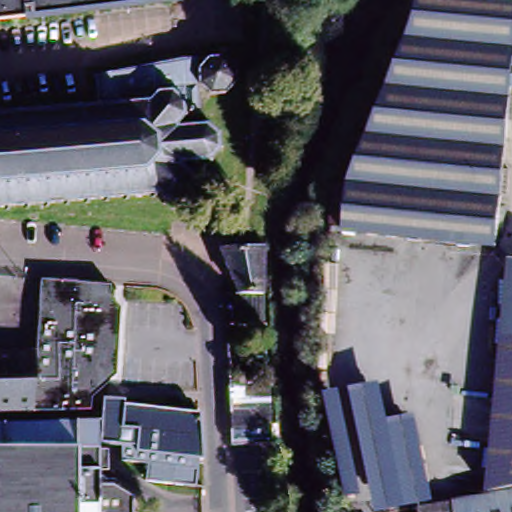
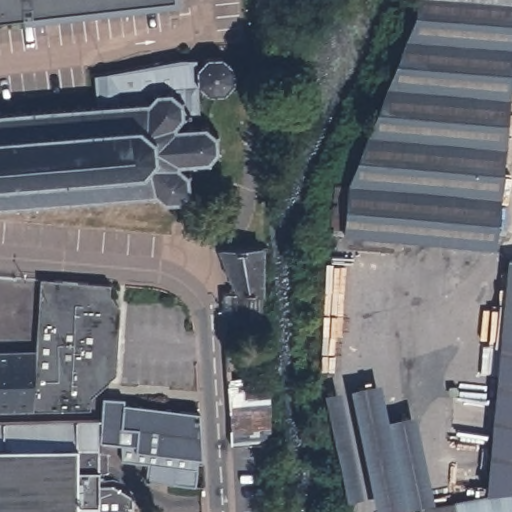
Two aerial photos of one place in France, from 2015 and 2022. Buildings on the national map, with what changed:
unchanged [(175,1),(164,2),(112,9),(61,16),(33,19),(32,10),(25,11),(26,20),(0,24),(0,0),(175,0),(175,1)]
unchanged [(353,181),(353,176),(383,104),(419,16),(420,11),(421,0),(512,0),(512,120),(500,243),(388,234),(377,232),(352,230),(340,229),(341,222),(345,180),(353,181)]
unchanged [(197,67),(207,56),(218,56),(222,56),(233,65),(234,80),(225,91),(208,92),(198,82),(197,67)]
unchanged [(47,205),(47,210),(42,210),(41,205),(31,206),(31,211),(25,211),(25,206),(12,207),(12,212),(7,212),(7,207),(0,208),(0,115),(0,109),(6,109),(6,114),(18,113),(18,108),(24,107),(24,113),(36,112),(35,107),(42,106),(42,112),(56,111),(55,105),(61,105),(61,110),(77,109),(77,104),(82,103),(82,109),(93,108),(93,103),(95,103),(93,75),(117,70),(180,58),(197,57),(197,67),(198,82),(200,121),(181,122),(185,124),(182,128),(178,127),(174,134),(186,133),(186,129),(192,129),(192,133),(203,132),(207,127),(211,131),(208,134),(213,141),(218,139),(220,142),(217,145),(218,157),(222,160),(220,163),(215,161),(211,165),(213,169),(209,172),(206,167),(195,167),(194,171),(189,171),(188,167),(175,168),(183,177),(188,174),(191,180),(186,182),(187,191),(192,192),(190,197),(185,195),(180,202),(182,207),(179,210),(176,206),(165,207),(163,212),(159,211),(160,205),(149,200),(146,205),(142,202),(144,197),(131,198),(131,204),(125,204),(125,199),(112,200),(113,205),(106,205),(105,200),(90,202),(90,207),(83,207),(83,202),(69,203),(69,208),(62,209),(61,204),(53,204),(47,205)]
unchanged [(227,255),(265,253),(266,253),(265,263),(265,325),(228,325),(226,296),(240,295),(222,255),(227,255)]
unchanged [(512,486),(485,491),(505,259),(512,260),(512,486)]
unchanged [(35,412),(30,412),(26,412),(27,393),(30,353),(36,280),(43,280),(92,285),(107,286),(106,295),(110,301),(108,320),(108,331),(107,341),(110,344),(110,352),(105,357),(105,370),(104,372),(103,386),(85,400),(85,411),(35,412)]
unchanged [(30,353),(27,393),(26,412),(0,413),(0,354),(30,353)]
unchanged [(268,377),(273,436),(237,438),(234,380),(268,377)]
unchanged [(371,387),(376,421),(406,417),(423,499),(371,511),(366,487),(342,493),(325,397),(371,387)]
unchanged [(194,457),(192,482),(180,482),(171,482),(172,463),(139,462),(118,461),(119,446),(112,445),(96,445),(98,410),(98,406),(104,400),(119,401),(119,406),(147,407),(157,407),(196,409),(198,457),(194,457)]
unchanged [(17,425),(95,422),(96,445),(96,451),(103,451),(103,471),(96,471),(96,486),(110,486),(128,497),(128,512),(0,512),(0,425),(17,425)]
unchanged [(512,491),(512,512),(417,512),(415,505),(512,491)]

